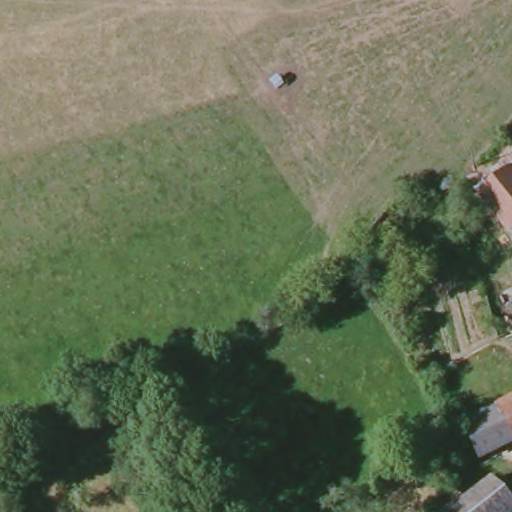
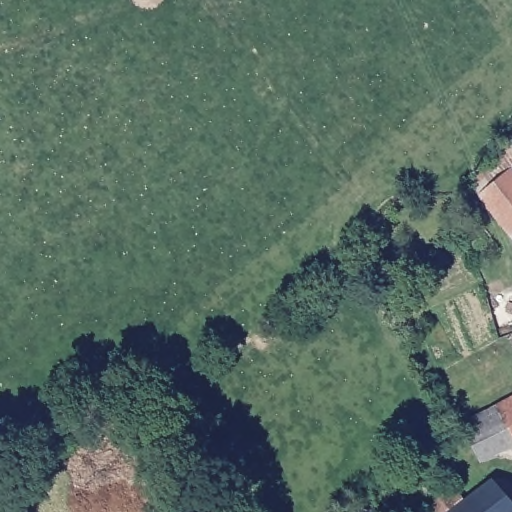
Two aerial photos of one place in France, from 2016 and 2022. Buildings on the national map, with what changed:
unchanged [(485,192),(512,169),(512,229),(485,192)]
unchanged [(478,457),(458,422),(512,393),(512,438),(478,457)]
unchanged [(504,497),(511,489),(512,489),(512,512),(450,512),(463,501),(490,480),(504,497)]

